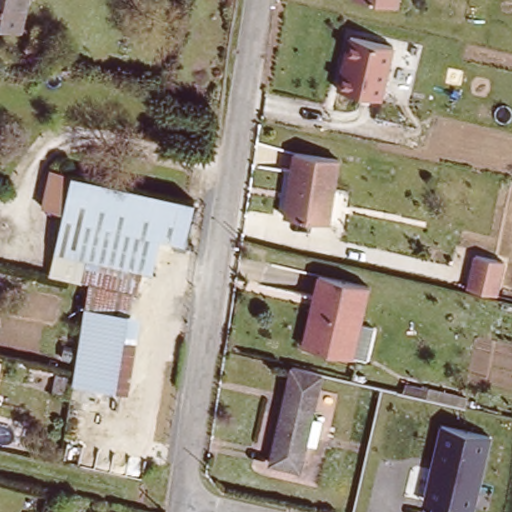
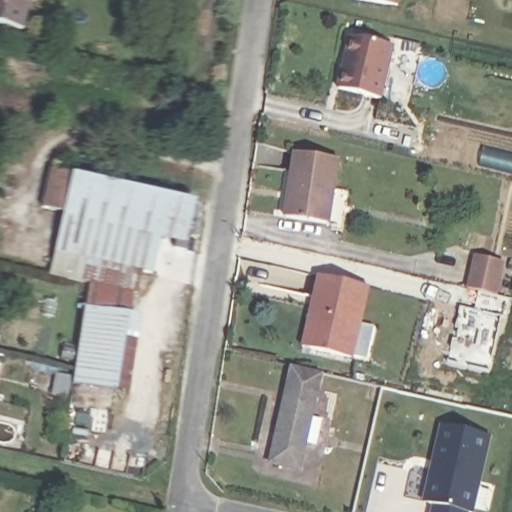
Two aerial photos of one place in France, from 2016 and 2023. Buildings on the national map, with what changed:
unchanged [(0,0),(31,0),(25,27),(0,21),(0,0)]
unchanged [(361,0),(399,0),(398,6),(361,0)]
unchanged [(350,37),(392,47),(380,100),(336,90),(350,37)]
unchanged [(287,199),(295,151),(338,158),(330,209),(327,222),(285,215),(287,199)]
unchanged [(150,227),(99,214),(64,206),(73,168),(195,196),(186,235),(150,227)]
unchanged [(91,279),(84,278),(99,214),(150,227),(136,289),(91,279)]
unchanged [(468,288),(475,255),(504,262),(496,295),(468,288)]
unchanged [(307,293),(313,270),(362,281),(353,322),(367,325),(360,356),(303,344),(296,342),(307,293)]
unchanged [(76,379),(78,367),(87,307),(127,313),(117,385),(76,379)]
unchanged [(320,370),(305,466),(275,461),(291,363),(320,370)]
unchanged [(421,504),(438,426),(490,438),(474,512),(430,512),(431,506),(421,504)]

